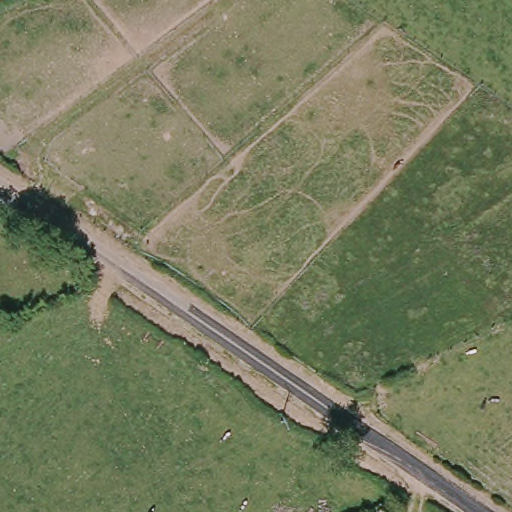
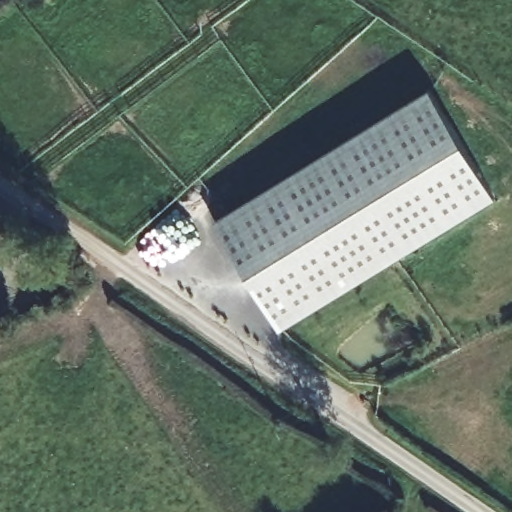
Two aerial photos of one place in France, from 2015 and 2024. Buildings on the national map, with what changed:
new [(426,93),(491,200),(277,331),(211,225),(426,93)]
demolished [(0,163),(0,123),(28,145),(11,170),(0,163)]

